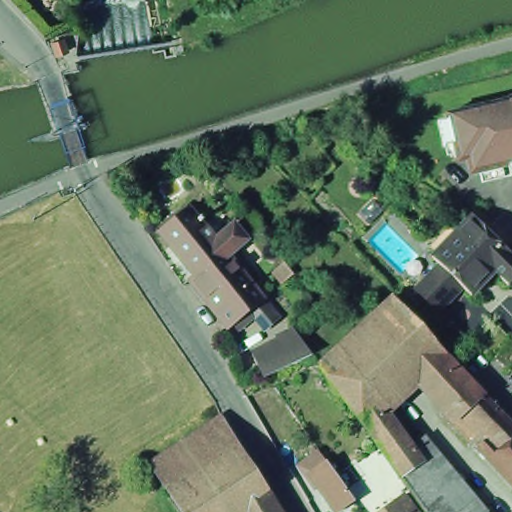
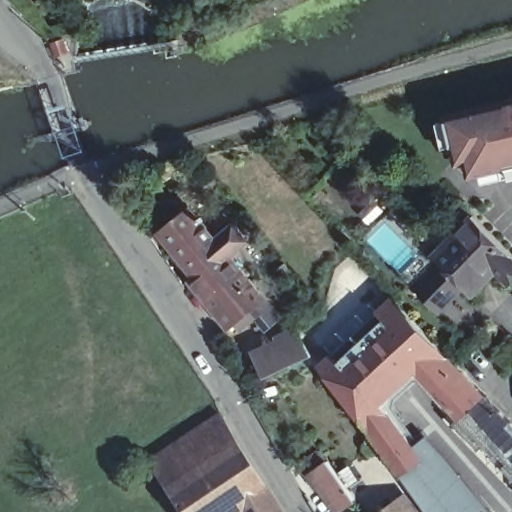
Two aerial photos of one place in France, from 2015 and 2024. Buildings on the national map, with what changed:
unchanged [(59,59),(43,36),(72,25),(82,49),(59,59)]
unchanged [(479,172),(469,174),(466,157),(457,160),(453,143),(443,146),(437,120),(447,118),(446,114),(508,99),(507,98),(512,96),(512,174),(481,182),(479,172)]
unchanged [(228,328),(188,279),(194,273),(158,230),(188,206),(214,238),(234,222),(247,239),(228,254),(264,298),(279,317),(266,328),(254,315),(239,327),(236,321),(228,328)]
unchanged [(487,261),(462,284),(428,250),(469,211),(472,213),(498,239),(501,242),(512,253),(512,270),(504,278),(487,261)]
unchanged [(446,352),(423,375),(384,410),(379,404),(341,355),(399,301),(446,352)]
unchanged [(254,358),(281,345),(280,341),(294,334),(296,333),(313,358),(311,359),(293,367),(266,381),(254,358)]
unchanged [(503,341),(512,343),(512,363),(498,361),(503,341)]
unchanged [(489,398),(468,419),(466,421),(423,375),(446,352),(489,398)]
unchanged [(325,369),(341,355),(379,404),(363,417),(325,369)]
unchanged [(512,445),(493,464),(488,459),(486,462),(459,433),(471,422),(468,419),(489,398),(512,422),(512,445)]
unchanged [(384,410),(418,452),(427,464),(406,479),(378,437),(379,437),(363,417),(379,404),(384,410)]
unchanged [(251,511),(249,512),(182,512),(156,473),(226,426),(245,456),(272,498),(281,512),(252,512),(251,511)]
unchanged [(430,442),(487,512),(428,512),(406,479),(427,464),(418,452),(430,442)]
unchanged [(512,445),(512,484),(493,464),(512,445)]
unchanged [(321,487),(315,492),(306,480),(328,464),(329,466),(336,476),(353,499),(354,501),(341,512),(321,487)]
unchanged [(397,498),(407,512),(378,512),(397,498)]

